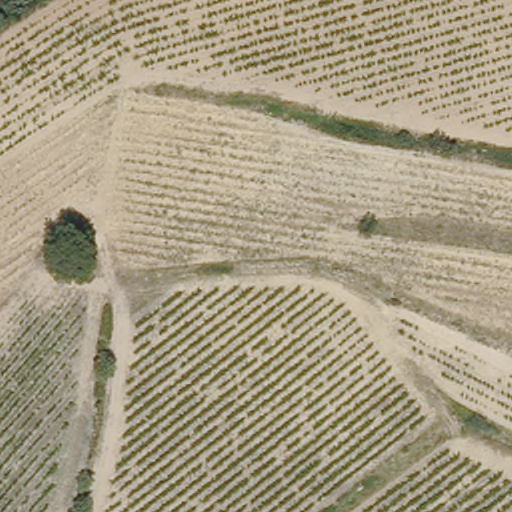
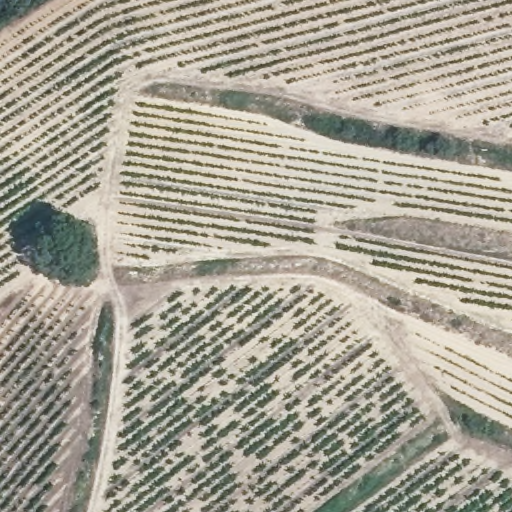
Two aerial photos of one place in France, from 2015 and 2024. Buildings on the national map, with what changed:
[]

